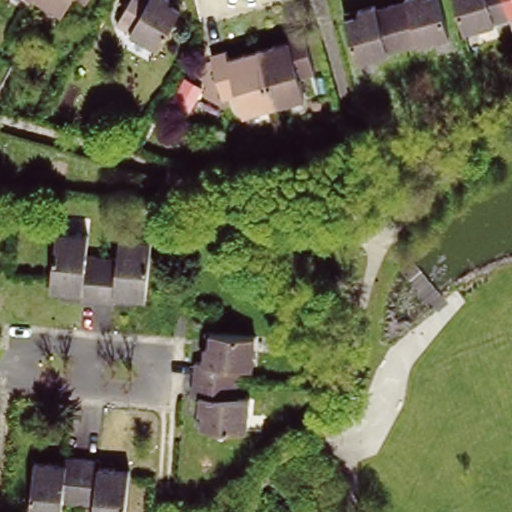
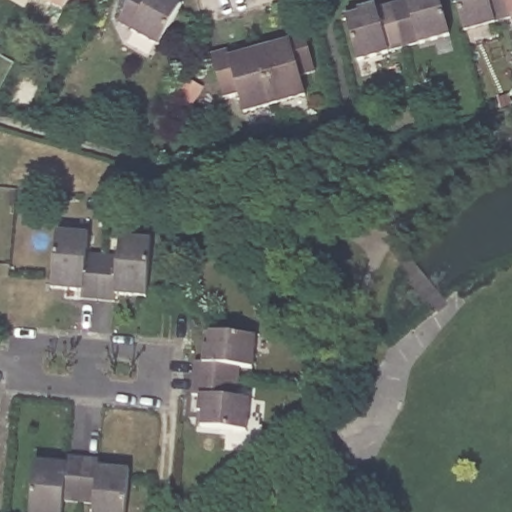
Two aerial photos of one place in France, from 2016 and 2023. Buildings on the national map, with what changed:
unchanged [(129,30),(130,29),(116,21),(128,0),(176,0),(181,3),(179,6),(176,12),(156,46),(129,30)]
unchanged [(420,43),(419,40),(403,45),(387,49),(388,52),(359,60),(348,22),(347,19),(346,14),(359,10),(374,6),(376,11),(392,6),(407,2),(406,0),(439,0),(450,34),(420,43)]
unchanged [(495,19),(495,22),(479,26),(465,30),(456,0),(512,0),(512,14),(509,15),(495,19)]
unchanged [(285,29),(302,24),(303,29),(313,66),(298,70),(304,89),(272,98),(243,106),(237,86),(221,91),(211,54),(209,50),(226,45),(228,53),(244,49),(256,45),(270,41),(287,37),(285,29)]
unchanged [(134,291),(117,289),(117,297),(98,296),(83,294),(84,286),(68,285),(53,283),(54,279),(54,277),(59,226),(90,229),(88,250),(103,251),(119,253),(121,233),(152,236),(147,287),(147,292),(134,291)]
unchanged [(200,407),(202,390),(194,389),(196,373),(197,356),(205,357),(207,341),(208,326),(212,327),(258,331),(255,362),(242,361),(240,377),(239,392),(252,393),(249,425),(203,421),(199,421),(200,407)]
unchanged [(65,453),(82,455),(99,456),(99,463),(116,465),(129,466),(129,471),(129,472),(125,512),(93,512),(94,499),(77,498),(63,496),(61,512),(28,512),(34,464),(34,461),(34,456),(49,458),(65,460),(65,453)]

